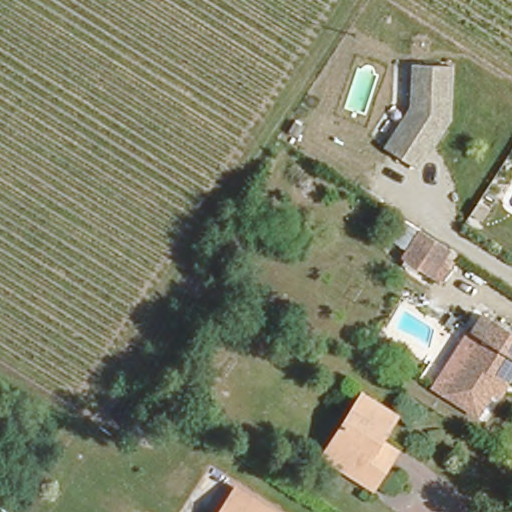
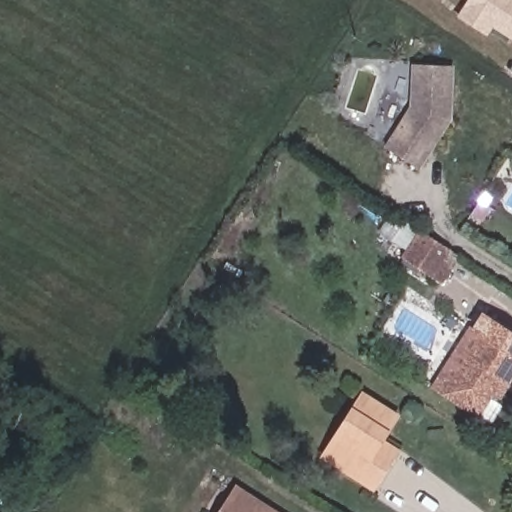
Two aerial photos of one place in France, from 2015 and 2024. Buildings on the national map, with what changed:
new [(467,0),(512,0),(512,40),(492,28),(487,36),(456,16),(467,0)]
unchanged [(452,118),(421,165),(385,143),(408,105),(408,65),(453,64),(452,118)]
unchanged [(400,255),(418,225),(447,243),(426,272),(400,255)]
unchanged [(224,300),(230,290),(249,301),(241,311),(224,300)]
unchanged [(446,325),(453,316),(462,321),(455,331),(446,325)]
unchanged [(476,411),(443,390),(457,369),(488,322),(512,337),(512,369),(502,383),(506,386),(500,396),(496,401),(486,396),(476,411)]
unchanged [(325,443),(357,392),(392,413),(380,432),(398,442),(393,450),(371,484),(354,473),(320,452),(325,443)]
unchanged [(217,512),(235,481),(284,512),(217,512)]

